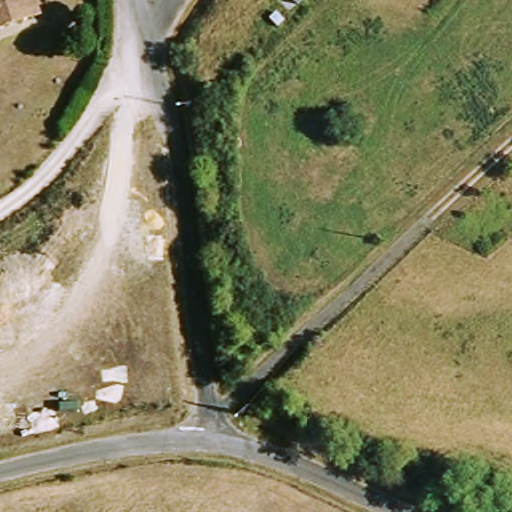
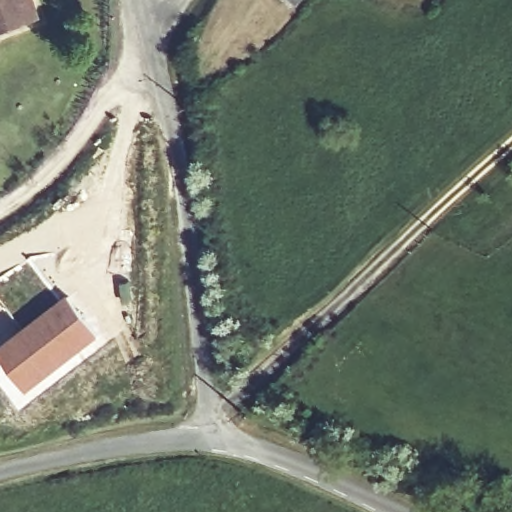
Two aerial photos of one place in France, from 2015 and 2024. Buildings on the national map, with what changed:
unchanged [(22,24),(0,31),(0,0),(39,0),(45,17),(22,24)]
unchanged [(297,6),(291,0),(303,0),(297,6)]
new [(0,354),(0,349),(67,294),(100,336),(30,392),(0,354)]

